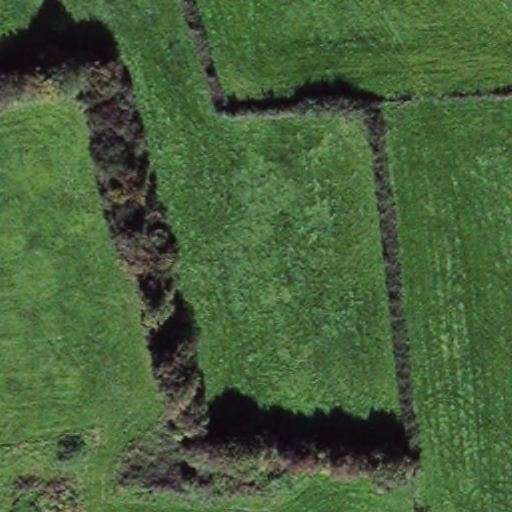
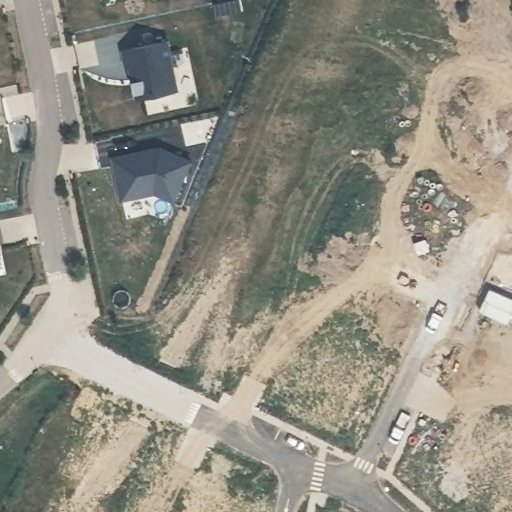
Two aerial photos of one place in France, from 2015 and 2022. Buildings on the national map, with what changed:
new [(167,40),(177,89),(136,97),(130,66),(125,66),(122,50),(167,40)]
new [(148,148),(148,151),(157,149),(159,147),(190,160),(172,200),(154,191),(119,197),(112,155),(148,148)]
demolished [(275,461),(272,477),(229,473),(230,457),(275,461)]
demolished [(35,512),(0,512),(0,493),(35,492),(35,512)]

